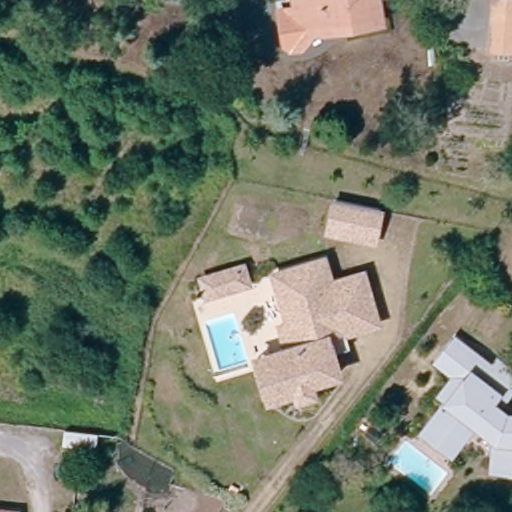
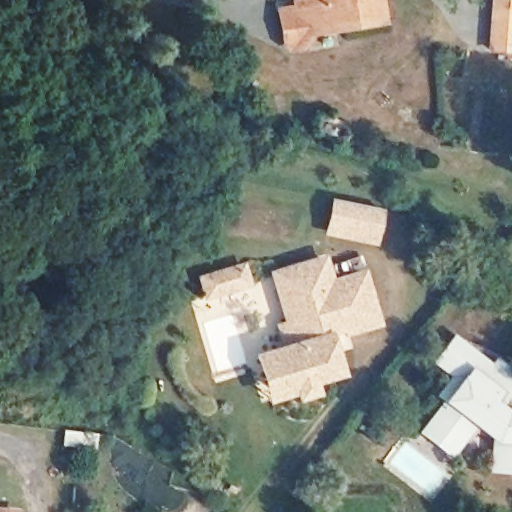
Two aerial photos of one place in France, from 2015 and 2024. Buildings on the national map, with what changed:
unchanged [(307,46),(297,45),(293,40),(294,5),(313,5),(313,2),(314,0),(385,0),(383,39),(357,38),(313,36),(313,41),(307,46)]
unchanged [(512,53),(491,52),(494,0),(512,0),(512,53)]
unchanged [(382,208),(375,240),(330,229),(337,198),(382,208)]
unchanged [(260,353),(271,350),(280,345),(288,343),(282,321),(291,318),(277,269),(326,254),(333,278),(365,268),(370,286),(379,318),(347,327),(351,343),(335,348),(341,368),(312,376),(316,387),(301,391),(299,384),(281,389),(271,392),(260,353)]
unchanged [(241,266),(246,282),(205,294),(200,278),(241,266)]
unchanged [(432,418),(447,399),(440,393),(456,373),(437,358),(452,339),(490,369),(496,362),(512,375),(512,380),(499,397),(492,391),(485,400),(503,414),(512,415),(512,468),(490,466),(494,436),(471,419),(457,437),(447,449),(422,429),(432,418)]
unchanged [(13,512),(0,512),(0,510),(13,512)]

